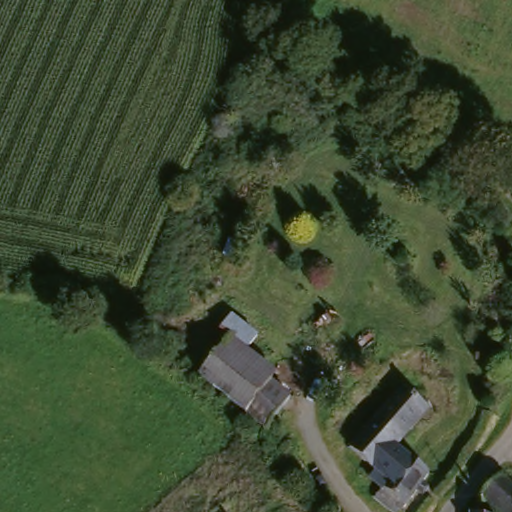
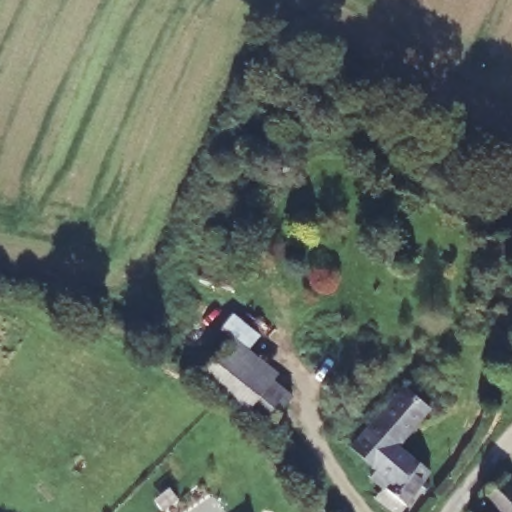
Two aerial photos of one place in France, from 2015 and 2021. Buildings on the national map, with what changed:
unchanged [(178,272),(189,277),(184,288),(173,283),(178,272)]
unchanged [(227,346),(266,377),(255,391),(281,411),(262,436),(195,383),(227,346)]
unchanged [(397,392),(422,413),(396,445),(371,422),(387,403),(397,392)]
unchanged [(373,472),(346,450),(371,422),(396,445),(387,455),(373,472)]
unchanged [(400,512),(391,512),(377,501),(407,458),(429,470),(400,512)]
unchanged [(512,497),(512,512),(491,512),(484,504),(501,485),(512,497)]

